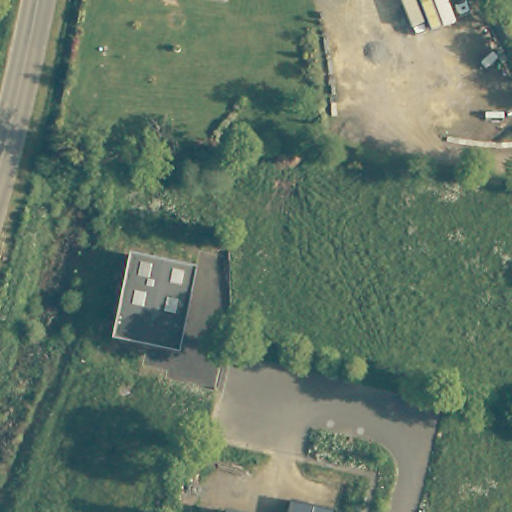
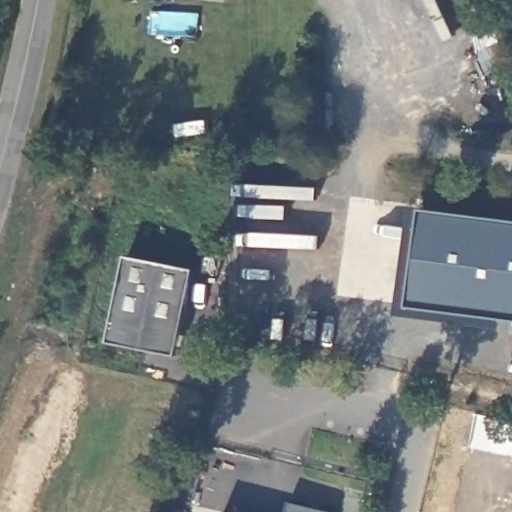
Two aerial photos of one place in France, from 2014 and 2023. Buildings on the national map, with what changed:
new [(502,316),(500,326),(399,312),(413,205),(425,206),(512,218),(512,317),(502,316)]
unchanged [(179,356),(112,342),(129,255),(196,269),(179,356)]
unchanged [(336,512),(289,512),(292,501),(336,512)]
unchanged [(225,512),(225,510),(233,512),(225,512)]

